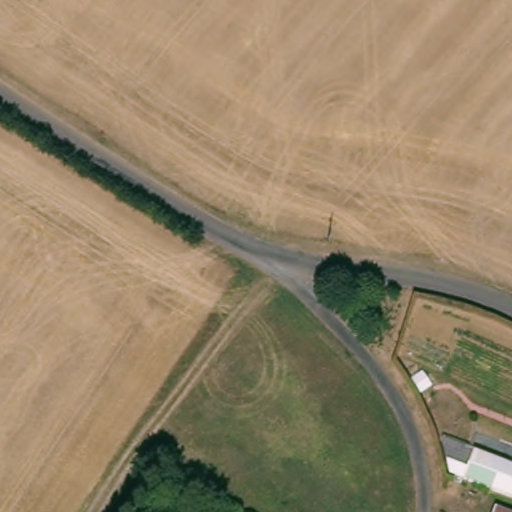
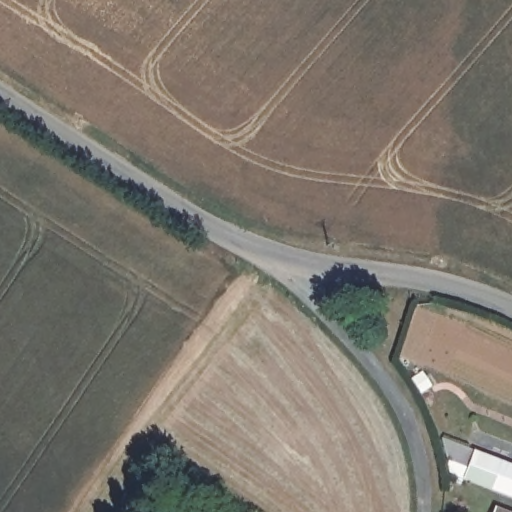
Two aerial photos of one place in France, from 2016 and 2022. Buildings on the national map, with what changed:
unchanged [(467,451),(512,468),(512,500),(485,489),(456,477),(467,451)]
unchanged [(502,512),(487,512),(488,507),(502,512)]

